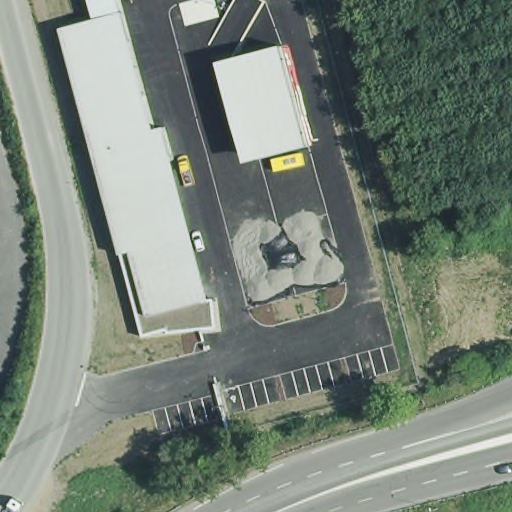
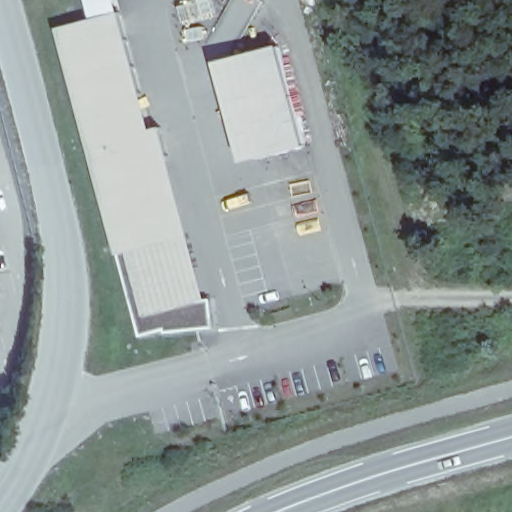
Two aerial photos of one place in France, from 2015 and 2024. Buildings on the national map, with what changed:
unchanged [(164,126),(209,299),(212,298),(215,327),(166,333),(165,330),(141,337),(119,255),(57,29),(93,19),(88,0),(120,0),(154,129),(164,126)]
unchanged [(282,45),(307,146),(245,163),(217,62),(282,45)]

